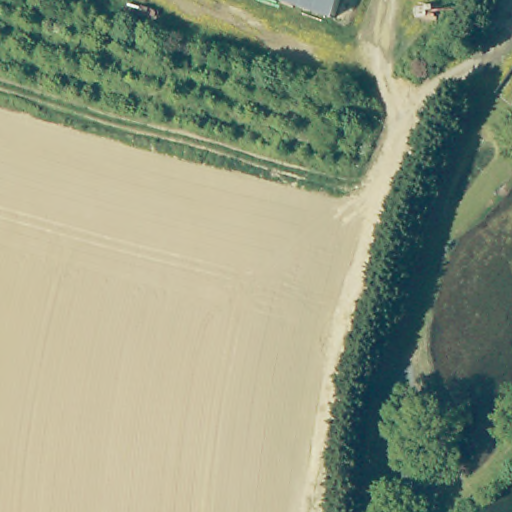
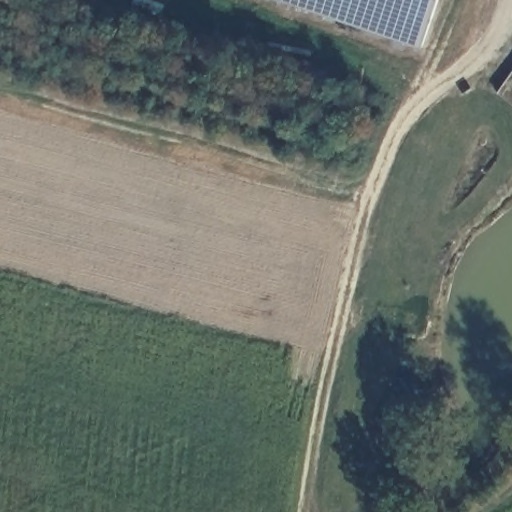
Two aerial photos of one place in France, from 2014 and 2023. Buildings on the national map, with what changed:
unchanged [(340,15),(296,0),(344,0),(340,15)]
new [(344,0),(437,0),(422,46),(340,15),(344,0)]

